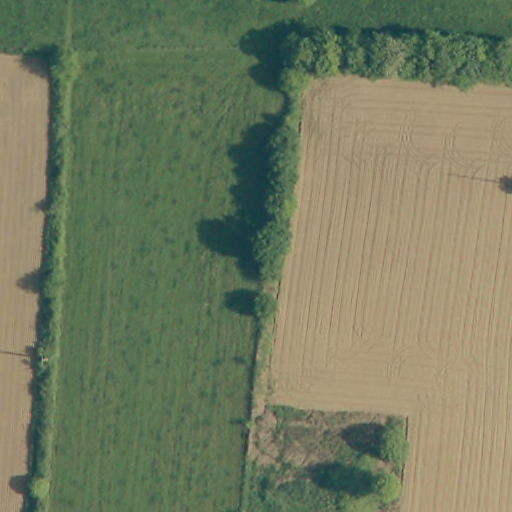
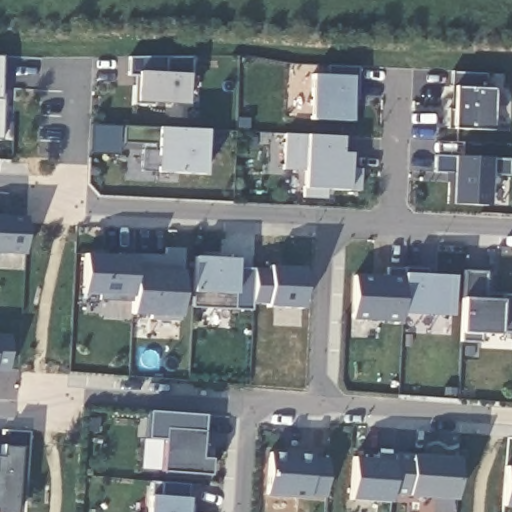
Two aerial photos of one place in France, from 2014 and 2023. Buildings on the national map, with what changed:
new [(0,140),(0,56),(1,56),(5,56),(1,140),(0,140)]
new [(193,56),(191,74),(188,74),(186,103),(137,100),(137,74),(129,74),(130,57),(193,56)]
new [(352,97),(350,120),(310,119),(313,74),(328,74),(328,65),(358,67),(357,97),(352,97)]
new [(487,74),(486,89),(493,89),(491,130),(453,128),(457,87),(453,87),(453,72),(487,74)]
new [(142,143),(124,142),(124,126),(158,126),(205,128),(202,174),(156,171),(141,170),(142,143)]
new [(285,133),(306,134),(342,135),(341,151),(351,152),(350,168),(362,168),(361,191),(349,189),(327,188),(326,198),(303,196),(303,188),(304,169),(283,169),(285,133)]
new [(491,174),(488,204),(452,204),(453,172),(435,172),(435,155),(453,155),(490,158),(508,159),(508,174),(491,174)]
new [(24,253),(0,253),(0,215),(25,216),(24,253)]
new [(120,250),(165,254),(165,247),(185,248),(184,270),(181,270),(180,316),(180,320),(151,320),(152,315),(132,314),(133,295),(82,293),(85,253),(120,254),(120,250)]
new [(193,306),(194,291),(195,255),(238,258),(237,268),(270,269),(270,266),(304,268),(301,308),(267,306),(267,303),(251,302),(251,309),(193,306)]
new [(352,318),(354,274),(386,275),(386,267),(428,267),(428,274),(446,274),(453,274),(452,316),(445,315),(401,313),(401,321),(352,318)]
new [(500,332),(482,331),(481,341),(461,340),(462,331),(463,298),(465,271),(486,272),(485,293),(512,295),(512,332),(500,332)]
new [(9,370),(0,370),(0,335),(10,335),(9,370)]
new [(162,471),(164,440),(146,438),(148,411),(204,414),(202,436),(201,437),(200,457),(210,458),(209,474),(162,471)]
new [(0,456),(1,456),(2,445),(20,446),(15,512),(0,512),(0,456)]
new [(310,496),(310,499),(266,496),(270,451),(286,453),(288,450),(313,452),(312,457),(328,458),(326,497),(310,496)]
new [(378,457),(378,453),(411,456),(411,454),(457,457),(455,499),(390,493),(390,501),(350,499),(353,457),(378,457)]
new [(505,465),(512,466),(512,508),(502,507),(505,465)]
new [(149,494),(152,495),(151,481),(188,484),(189,497),(187,512),(148,512),(149,494)]

